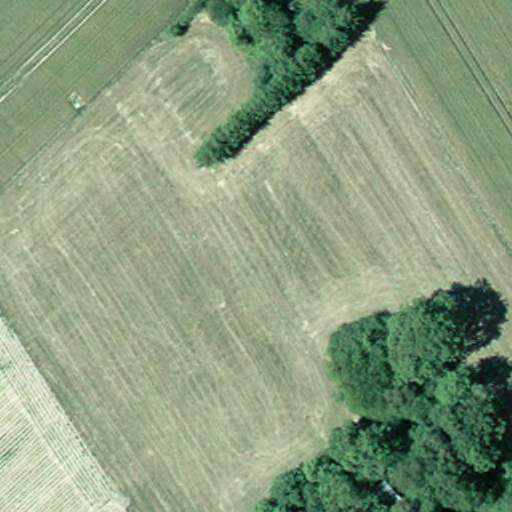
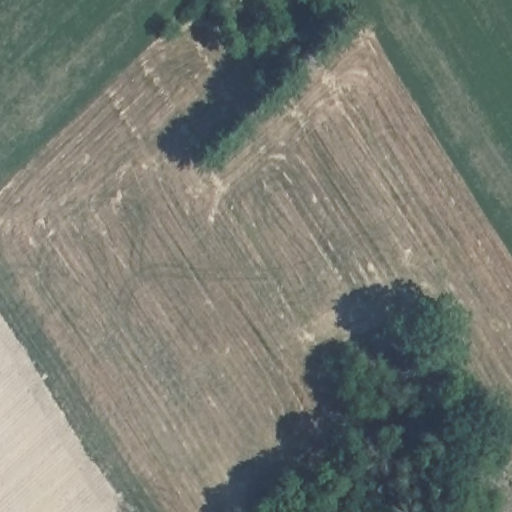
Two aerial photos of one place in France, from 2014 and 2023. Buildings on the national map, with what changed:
[]

